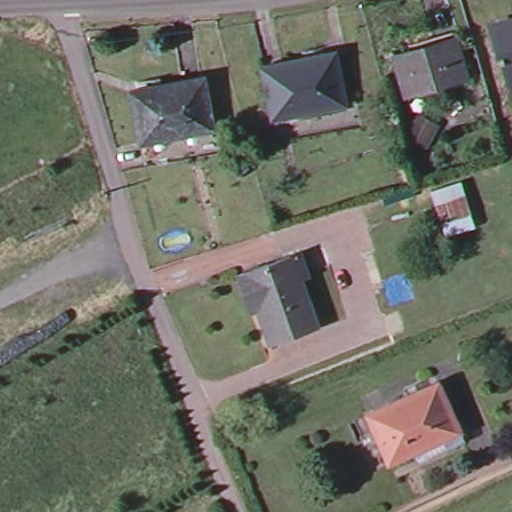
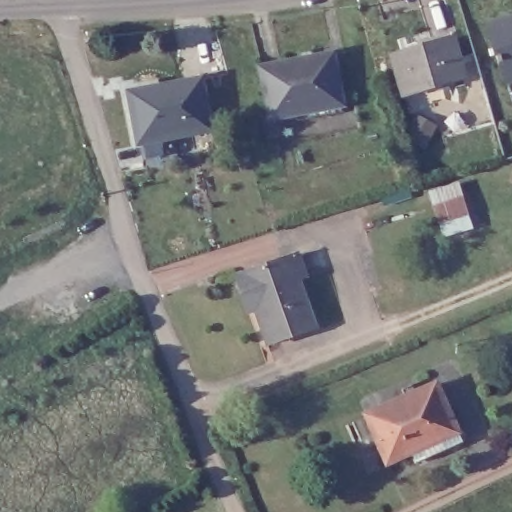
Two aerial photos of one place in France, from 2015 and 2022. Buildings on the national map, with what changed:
unchanged [(488,21),(512,14),(512,61),(504,64),(507,74),(506,74),(501,57),(499,57),(488,21)]
unchanged [(391,54),(453,36),(464,76),(403,94),(391,54)]
unchanged [(334,58),(343,104),(269,118),(259,66),(302,57),(304,64),(334,58)]
unchanged [(201,76),(211,128),(138,142),(128,90),(201,76)]
unchanged [(460,184),(478,232),(439,241),(424,190),(460,184)]
unchanged [(294,255),(299,267),(320,326),(273,342),(256,296),(249,298),(244,283),(241,274),(294,255)]
unchanged [(436,382),(458,431),(387,462),(364,413),(436,382)]

